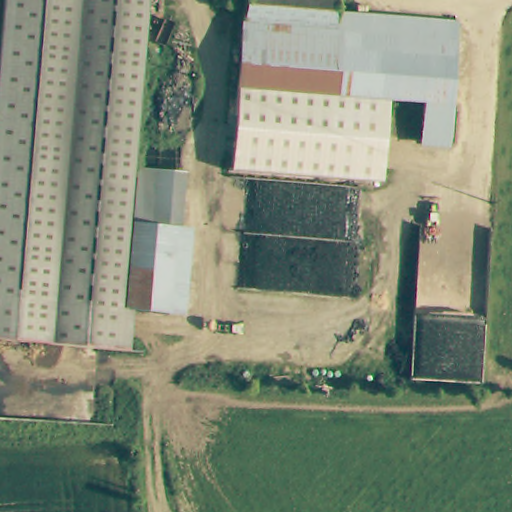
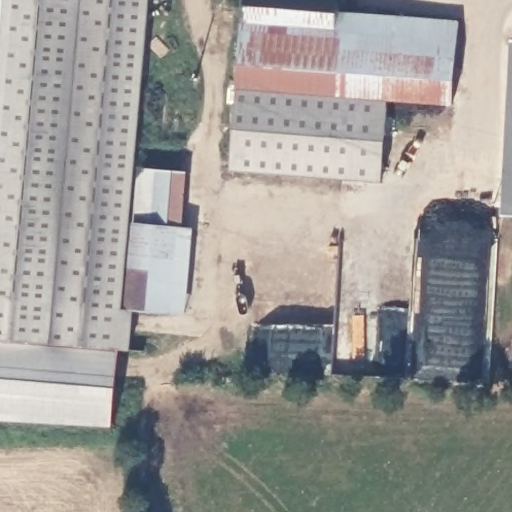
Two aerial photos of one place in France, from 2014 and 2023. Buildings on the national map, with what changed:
unchanged [(134,171),(116,307),(113,349),(0,340),(0,69),(8,0),(157,0),(134,171)]
unchanged [(242,37),(246,0),(338,0),(338,9),(459,19),(448,178),(230,161),(235,36),(242,37)]
unchanged [(116,307),(134,171),(187,176),(182,225),(213,229),(205,318),(116,307)]
new [(116,307),(135,309),(131,352),(119,351),(113,427),(0,419),(0,340),(113,349),(116,307)]

